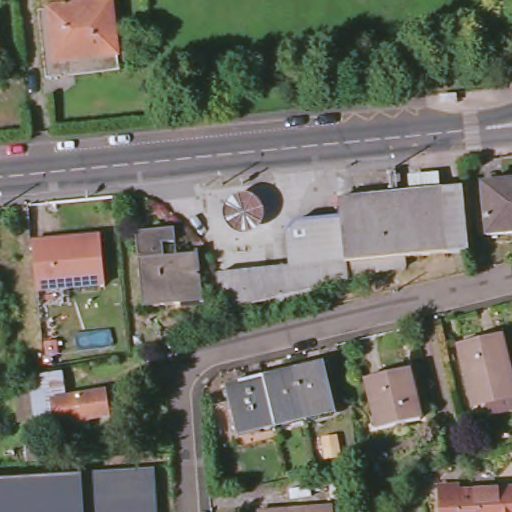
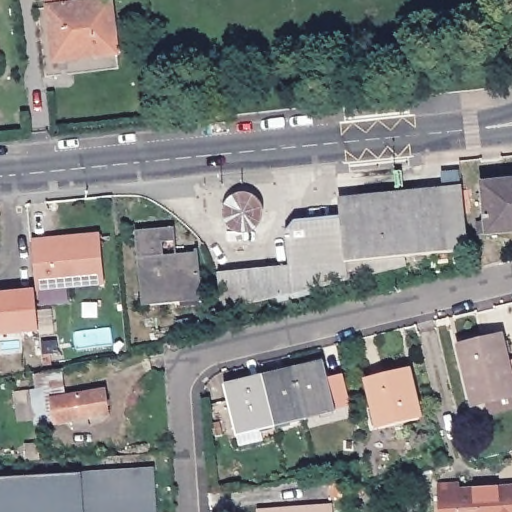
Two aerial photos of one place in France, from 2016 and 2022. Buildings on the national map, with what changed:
unchanged [(48,0),(67,0),(69,14),(112,8),(118,59),(56,67),(48,0)]
unchanged [(512,183),(512,234),(489,236),(484,186),(512,183)]
unchanged [(443,191),(462,190),(468,250),(449,252),(406,256),(407,267),(289,296),(222,313),(218,276),(266,271),(289,269),(286,234),(296,223),(341,218),(340,201),(443,191)]
unchanged [(257,200),(261,205),(265,215),(262,226),(257,234),(243,236),(231,232),(226,223),(226,212),(231,202),(242,197),(257,200)]
unchanged [(176,230),(176,244),(163,245),(164,258),(194,255),(194,254),(199,254),(204,303),(143,309),(136,234),(176,230)]
unchanged [(99,241),(104,290),(37,297),(33,247),(99,241)]
new [(39,333),(0,336),(0,294),(34,291),(39,333)]
unchanged [(503,341),(512,378),(512,393),(474,403),(461,351),(503,341)]
unchanged [(296,372),(324,366),(334,411),(307,417),(296,372)]
unchanged [(405,367),(419,428),(379,438),(364,377),(405,367)]
unchanged [(108,395),(113,420),(43,431),(36,395),(43,394),(41,378),(63,372),(68,402),(108,395)]
unchanged [(266,379),(296,372),(307,417),(276,425),(266,379)]
unchanged [(236,434),(225,389),(266,379),(276,425),(236,434)]
unchanged [(156,512),(0,512),(0,477),(153,470),(156,512)]
unchanged [(469,496),(512,492),(512,512),(439,512),(437,491),(468,488),(469,496)]
unchanged [(336,512),(307,512),(336,510),(336,512)]

